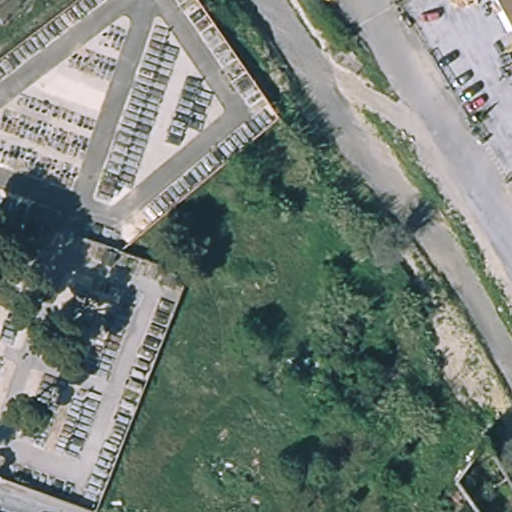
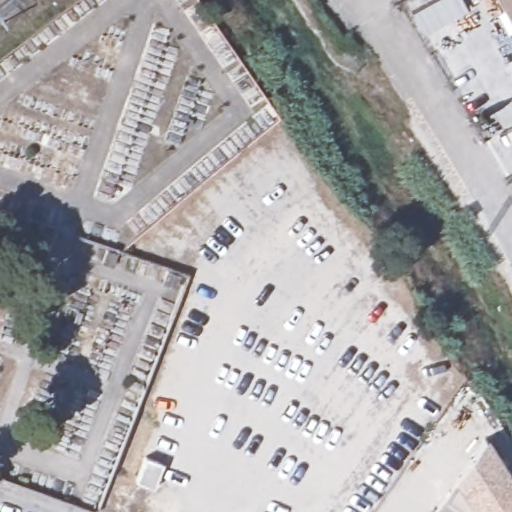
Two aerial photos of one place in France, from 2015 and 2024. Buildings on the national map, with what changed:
unchanged [(512,0),(512,29),(496,0),(512,0)]
unchanged [(512,193),(507,186),(512,182),(512,193)]
new [(512,512),(476,512),(473,509),(457,482),(452,474),(486,434),(512,476),(512,512)]
unchanged [(457,482),(473,509),(471,512),(436,512),(457,482)]

